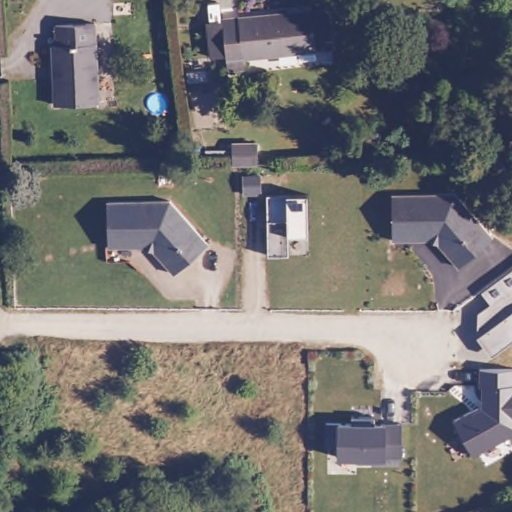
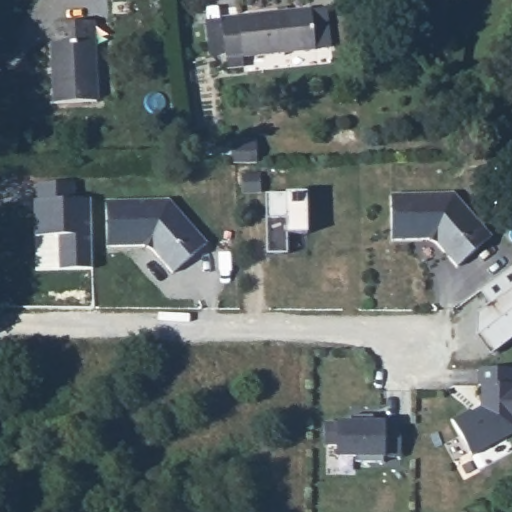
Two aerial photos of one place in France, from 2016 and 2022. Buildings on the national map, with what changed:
unchanged [(235,65),(219,67),(213,14),(302,6),(317,5),(321,41),(304,43),(235,53),(235,65)]
unchanged [(51,97),(46,38),(55,38),(53,18),(93,15),(99,95),(51,97)]
unchanged [(244,163),(245,142),(267,142),(269,161),(244,163)]
new [(60,270),(58,236),(33,235),(32,200),(36,200),(36,184),(75,184),(76,199),(91,199),(94,269),(60,270)]
unchanged [(266,194),(310,193),(311,234),(288,235),(287,253),(268,254),(266,194)]
unchanged [(453,196),(493,237),(459,267),(442,250),(430,241),(393,241),(393,198),(453,196)]
unchanged [(173,202),(211,243),(176,273),(151,249),(111,247),(110,204),(173,202)]
unchanged [(476,313),(490,303),(482,290),(512,268),(512,340),(493,354),(478,335),(476,313)]
unchanged [(474,453),(452,418),(480,406),(480,385),(481,369),(512,369),(512,432),(474,453)]
unchanged [(401,425),(400,458),(337,457),(339,420),(401,425)]
unchanged [(467,512),(475,510),(475,512),(467,512)]

